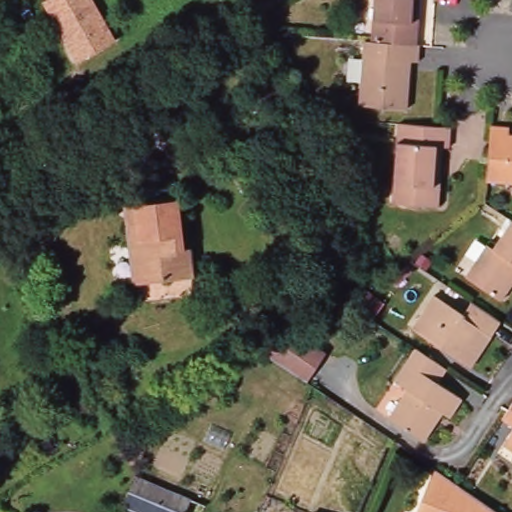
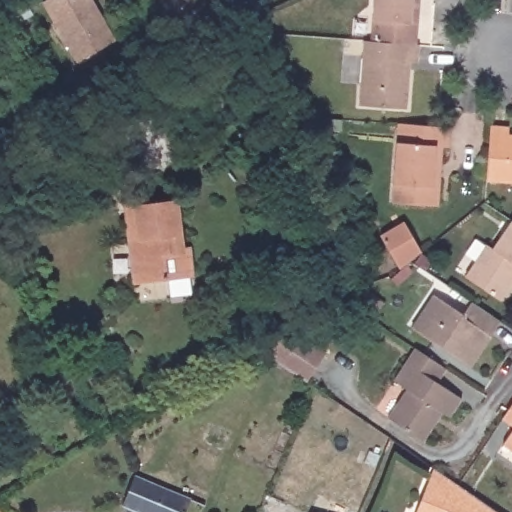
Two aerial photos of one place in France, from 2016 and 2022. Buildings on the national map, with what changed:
unchanged [(46,0),(94,0),(116,39),(77,61),(43,1),(46,0)]
unchanged [(417,50),(371,46),(374,0),(413,0),(412,4),(420,5),(418,26),(417,50)]
unchanged [(27,7),(31,15),(26,17),(21,10),(27,7)]
unchanged [(364,46),(371,46),(417,50),(419,50),(418,66),(411,66),(407,114),(360,110),(364,46)]
unchanged [(262,87),(261,86),(275,81),(283,100),(282,100),(254,111),(246,92),(262,87)]
unchanged [(403,119),(443,121),(456,122),(455,142),(442,141),(438,179),(445,180),(443,201),(397,198),(403,119)]
unchanged [(496,120),(512,121),(512,177),(492,175),(496,120)]
unchanged [(177,199),(182,250),(190,249),(193,275),(142,281),(134,282),(126,205),(133,204),(177,199)]
unchanged [(488,240),(495,244),(512,218),(512,280),(502,295),(467,271),(488,240)]
new [(406,221),(423,251),(402,269),(382,235),(406,221)]
unchanged [(416,258),(438,273),(436,278),(412,262),(416,258)]
unchanged [(440,290),(470,310),(478,298),(507,317),(476,362),(417,323),(440,290)]
unchanged [(296,332),(297,332),(326,353),(307,382),(261,350),(296,332)]
unchanged [(413,385),(400,375),(421,344),(451,365),(442,378),(467,394),(455,412),(447,408),(428,436),(393,413),(413,385)]
unchanged [(512,408),(512,418),(507,415),(512,408)]
unchanged [(508,440),(512,435),(512,442),(508,440)]
unchanged [(433,463),(456,478),(458,480),(504,512),(414,512),(433,463)]
unchanged [(140,476),(196,500),(191,512),(143,512),(127,505),(140,476)]

